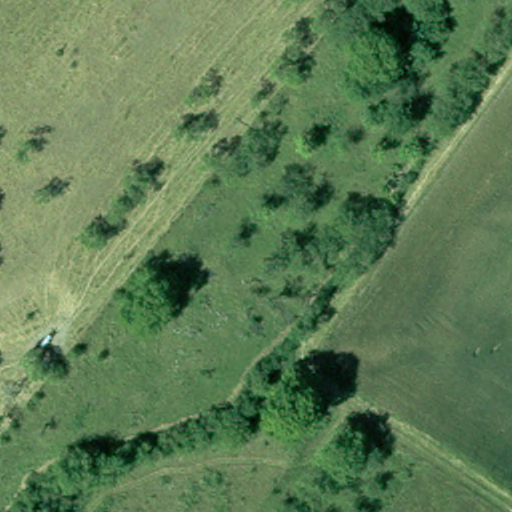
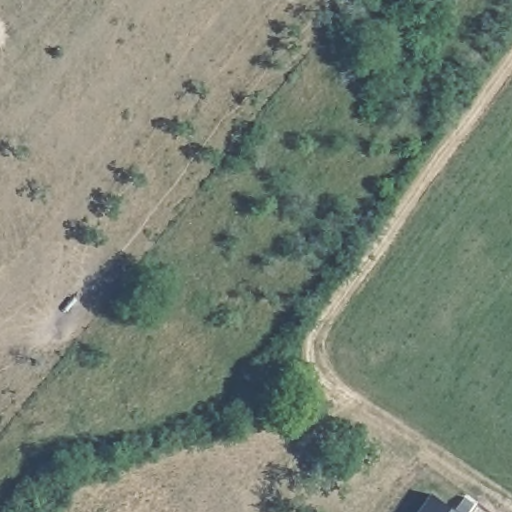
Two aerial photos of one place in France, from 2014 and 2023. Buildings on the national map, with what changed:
new [(430,493),(457,512),(416,512),(430,493)]

